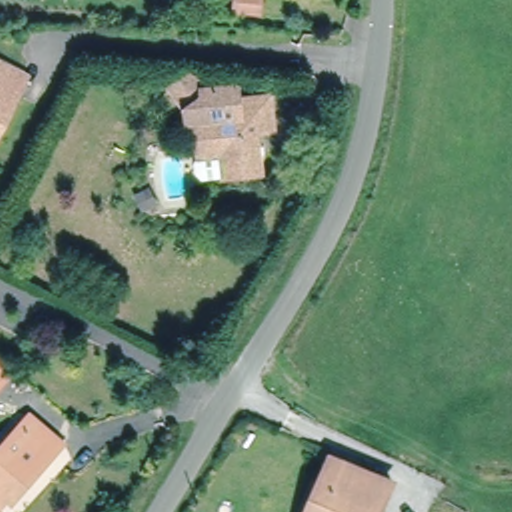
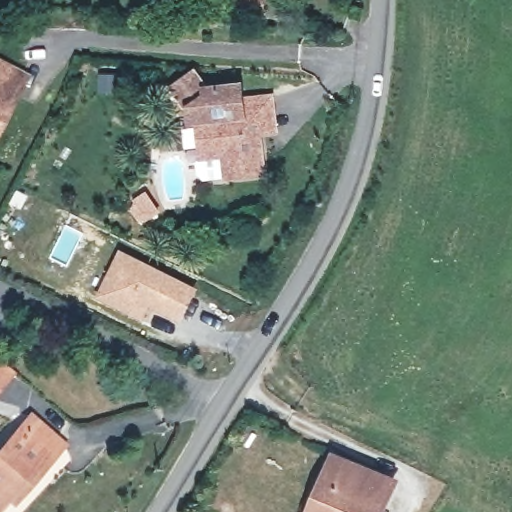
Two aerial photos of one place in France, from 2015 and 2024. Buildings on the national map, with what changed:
unchanged [(233,0),(258,0),(258,12),(232,11),(233,0)]
unchanged [(2,59),(26,75),(0,118),(0,58),(2,59)]
unchanged [(194,110),(176,68),(199,60),(207,81),(238,82),(237,97),(237,115),(194,113),(194,110)]
unchanged [(237,115),(237,97),(251,98),(271,99),(270,135),(250,134),(249,173),(211,172),(212,150),(192,148),(194,113),(237,115)]
new [(199,289),(184,323),(151,308),(145,320),(95,297),(119,250),(199,289)]
unchanged [(5,371),(0,378),(0,367),(5,371)]
unchanged [(4,512),(0,512),(0,458),(30,422),(34,418),(55,436),(67,446),(32,488),(19,505),(13,501),(4,512)]
unchanged [(301,503),(313,474),(325,479),(334,452),(335,449),(396,474),(383,512),(313,512),(314,508),(301,503)]

